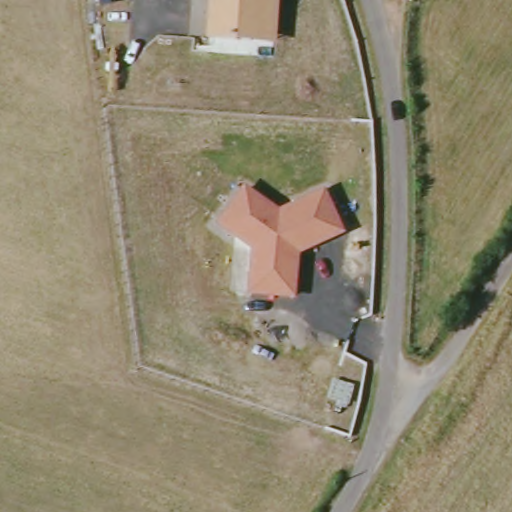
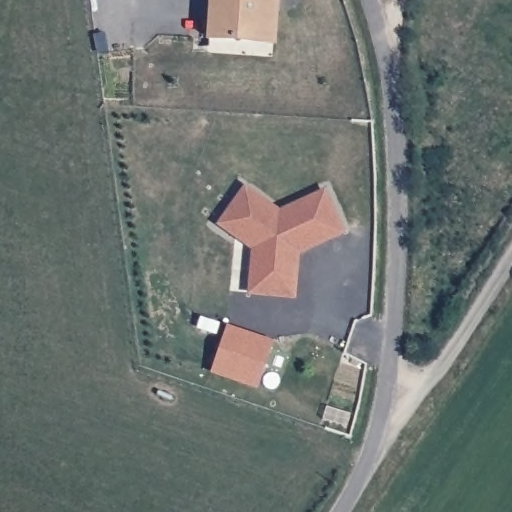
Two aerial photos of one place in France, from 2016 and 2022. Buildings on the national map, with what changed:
unchanged [(207,44),(210,0),(280,0),(277,46),(207,44)]
unchanged [(281,210),(328,188),(349,232),(303,255),(300,300),(250,297),(253,250),(219,227),(246,186),(281,210)]
new [(257,387),(213,372),(228,326),(272,340),(257,387)]

